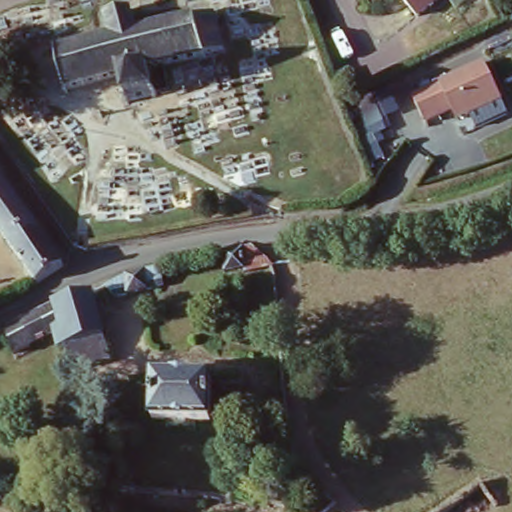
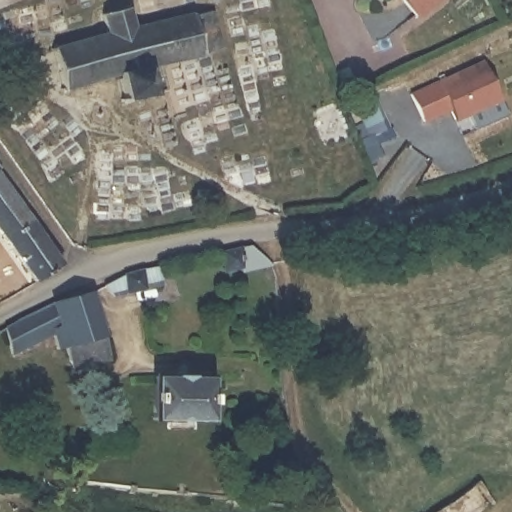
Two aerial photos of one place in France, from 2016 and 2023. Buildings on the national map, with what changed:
unchanged [(414,10),(405,0),(427,0),(414,10)]
unchanged [(132,27),(207,10),(215,51),(151,64),(155,87),(125,94),(120,70),(60,84),(51,45),(105,34),(100,15),(129,8),(132,27)]
unchanged [(480,62),(498,99),(452,120),(434,84),(480,62)]
unchanged [(354,65),(362,89),(352,91),(344,69),(354,65)]
unchanged [(378,99),(385,121),(370,126),(362,105),(378,99)]
unchanged [(65,262),(39,277),(0,223),(0,172),(65,262)]
unchanged [(230,278),(230,271),(230,248),(251,245),(279,245),(281,270),(256,270),(256,278),(230,278)]
unchanged [(167,278),(119,295),(114,280),(164,263),(167,278)]
unchanged [(107,352),(75,363),(69,340),(57,343),(55,330),(14,345),(5,321),(36,305),(65,293),(93,281),(107,352)]
unchanged [(209,375),(210,417),(153,417),(151,375),(209,375)]
unchanged [(499,509),(495,512),(438,512),(480,482),(499,509)]

